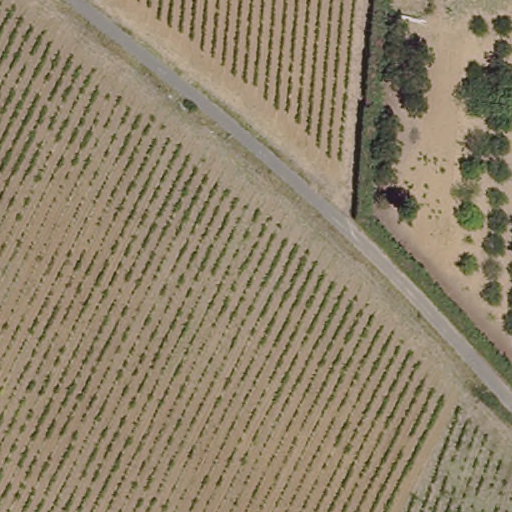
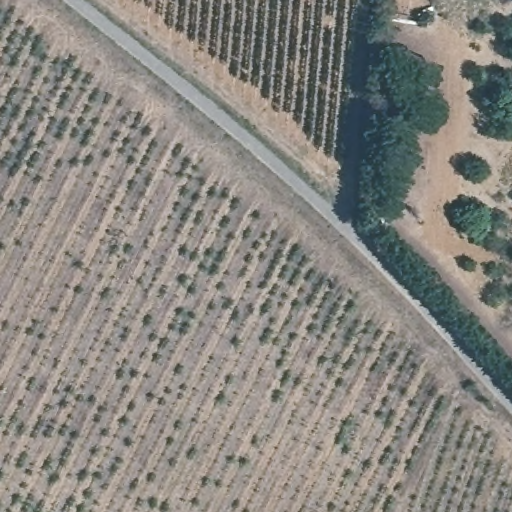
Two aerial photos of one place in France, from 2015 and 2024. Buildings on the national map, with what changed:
[]

